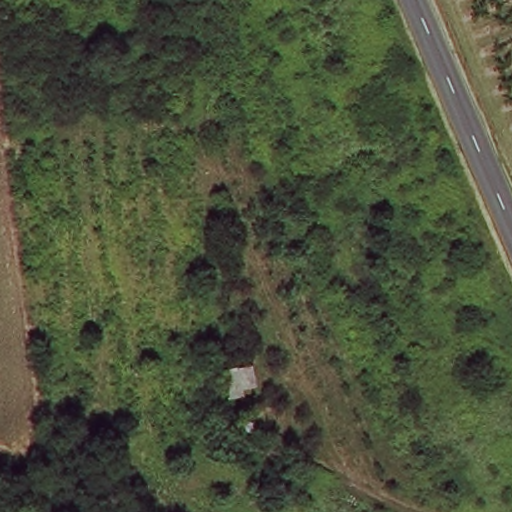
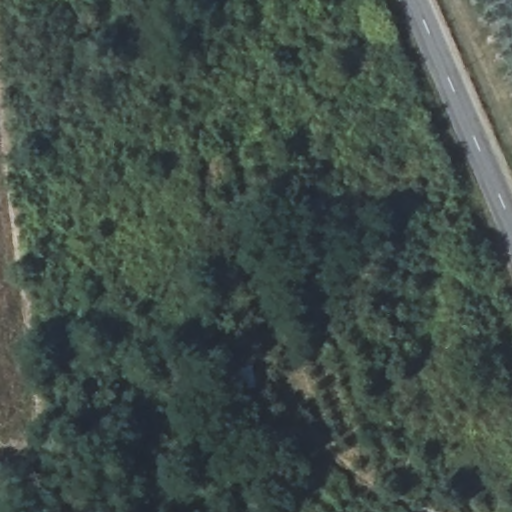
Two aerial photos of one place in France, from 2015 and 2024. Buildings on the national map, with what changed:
unchanged [(234,373),(248,370),(252,390),(237,394),(234,373)]

